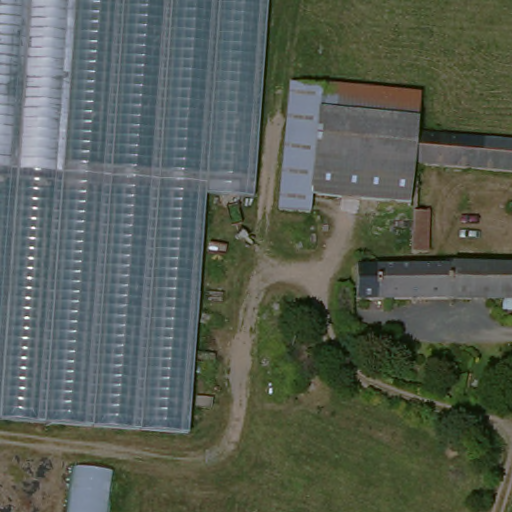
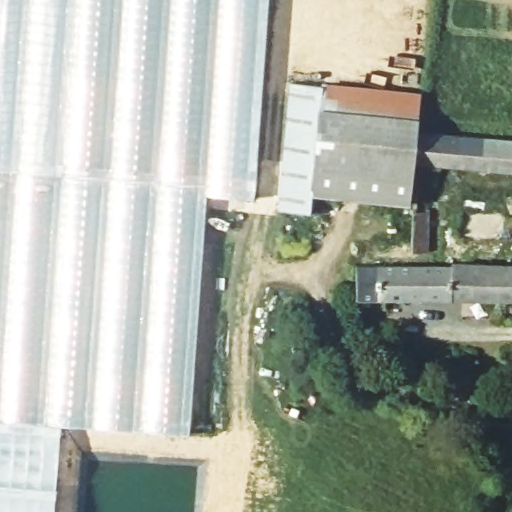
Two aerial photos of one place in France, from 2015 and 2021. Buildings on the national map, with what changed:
unchanged [(259,202),(211,199),(194,436),(0,422),(0,0),(273,0),(259,202)]
unchanged [(309,212),(279,209),(282,186),(291,94),(292,79),(426,94),(424,127),(420,162),(419,168),(419,172),(398,170),(316,160),(313,186),(309,212)]
unchanged [(424,127),(512,135),(512,171),(420,162),(424,127)]
unchanged [(431,212),(427,252),(411,251),(416,210),(431,212)]
demolished [(450,216),(446,256),(430,255),(435,214),(450,216)]
unchanged [(512,303),(357,292),(359,258),(414,262),(512,266),(512,303)]
new [(0,512),(0,422),(61,426),(54,512),(0,512)]

